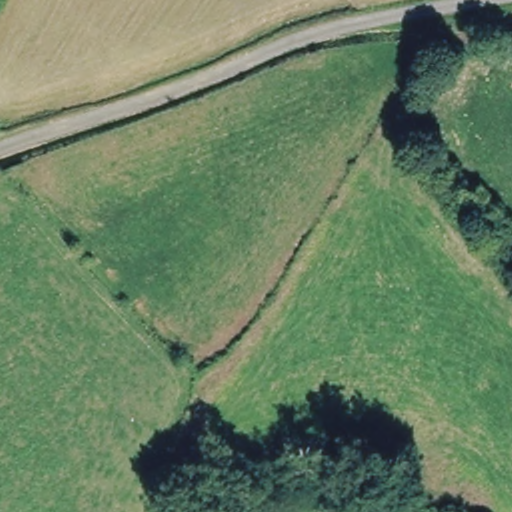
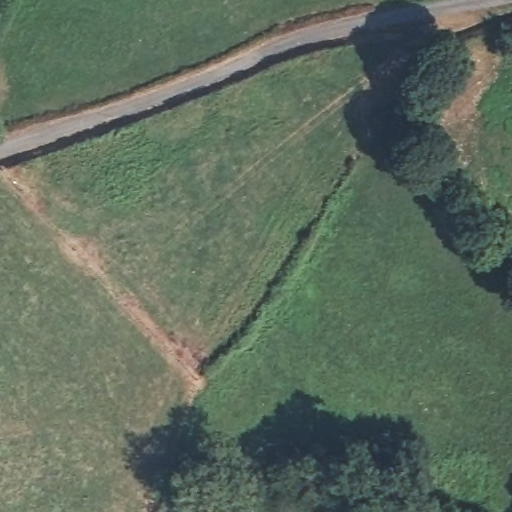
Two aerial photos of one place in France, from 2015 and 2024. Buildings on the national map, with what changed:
[]

